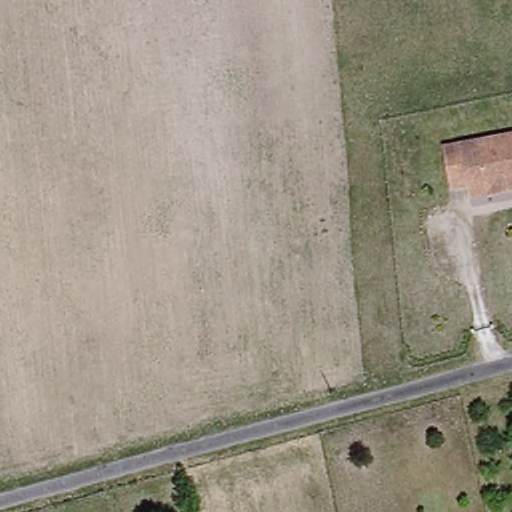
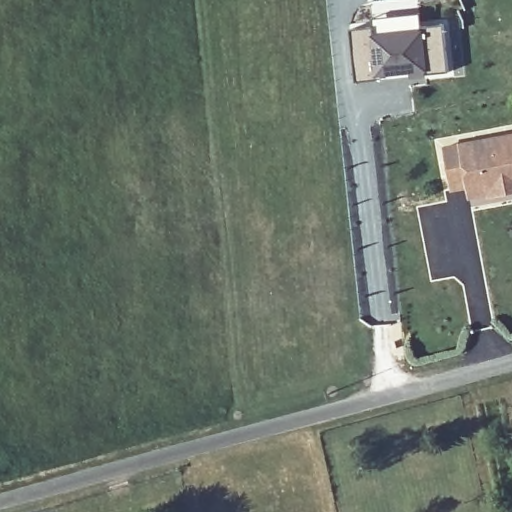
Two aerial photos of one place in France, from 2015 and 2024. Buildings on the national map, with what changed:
new [(378,22),(379,32),(425,28),(424,23),(448,20),(453,69),(429,71),(429,66),(382,71),(383,76),(360,78),(355,25),(378,22)]
unchanged [(486,194),(467,198),(465,187),(449,190),(441,148),(512,135),(512,192),(486,197),(486,194)]

